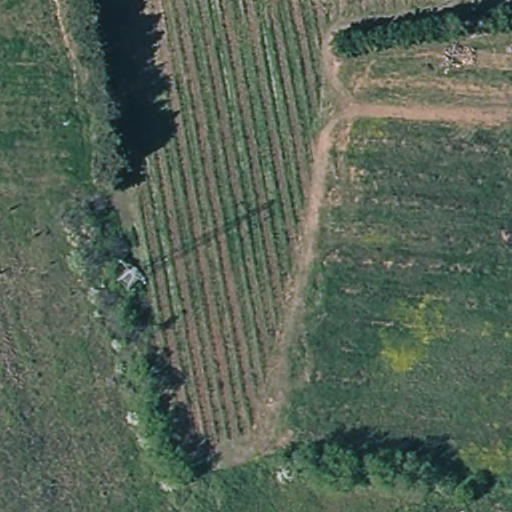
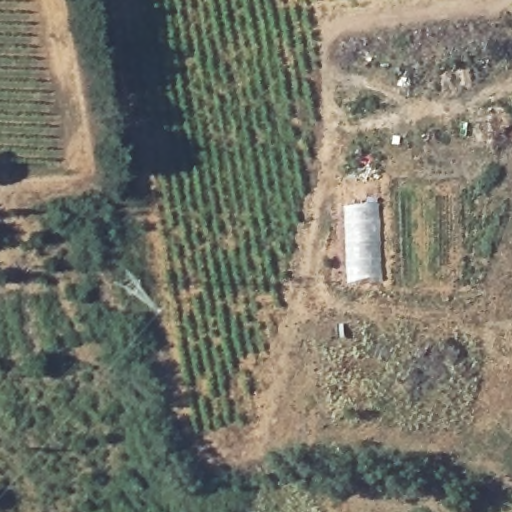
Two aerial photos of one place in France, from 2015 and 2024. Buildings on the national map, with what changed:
new [(346,282),(342,203),(375,202),(377,279),(346,282)]

